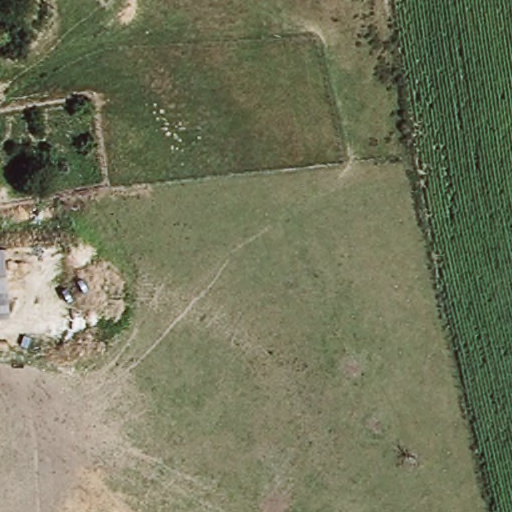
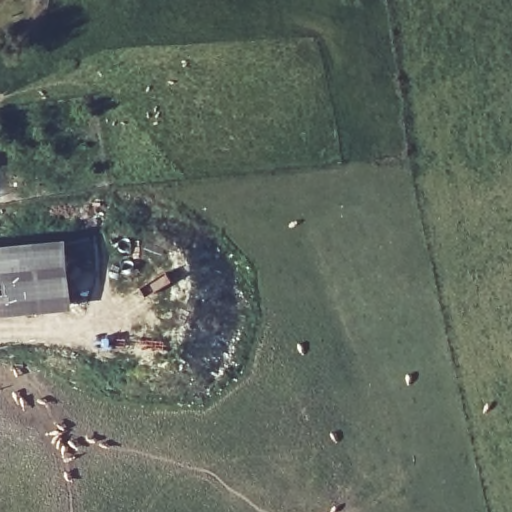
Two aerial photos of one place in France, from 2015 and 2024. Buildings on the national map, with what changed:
new [(70,240),(77,309),(0,317),(0,303),(9,302),(2,247),(70,240)]
unchanged [(0,303),(0,248),(2,247),(9,302),(0,303)]

